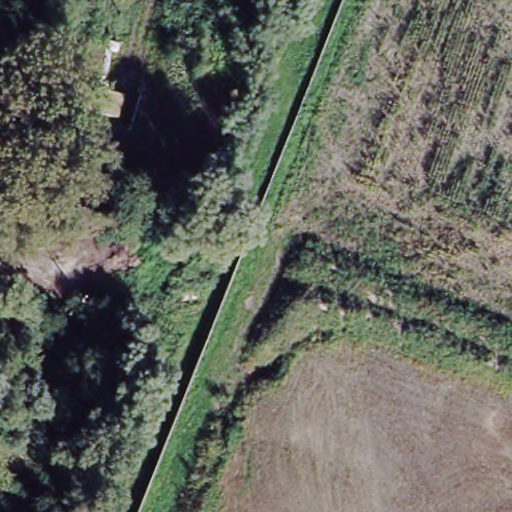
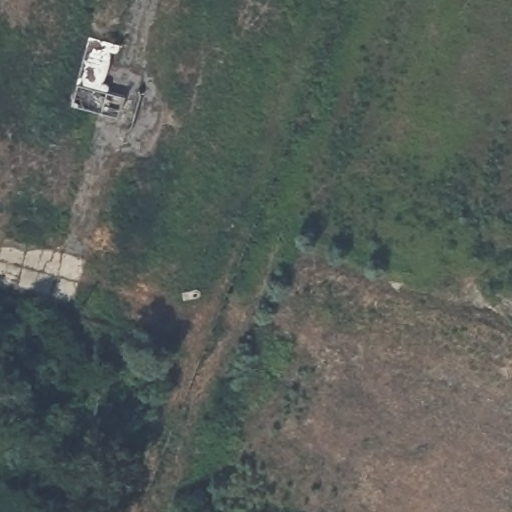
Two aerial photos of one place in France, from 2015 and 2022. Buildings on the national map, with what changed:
unchanged [(104,86),(111,88),(110,96),(124,100),(119,120),(71,106),(90,41),(119,50),(116,54),(110,54),(104,86)]

